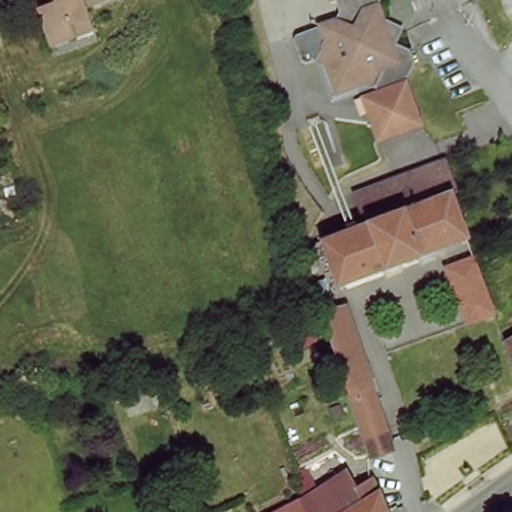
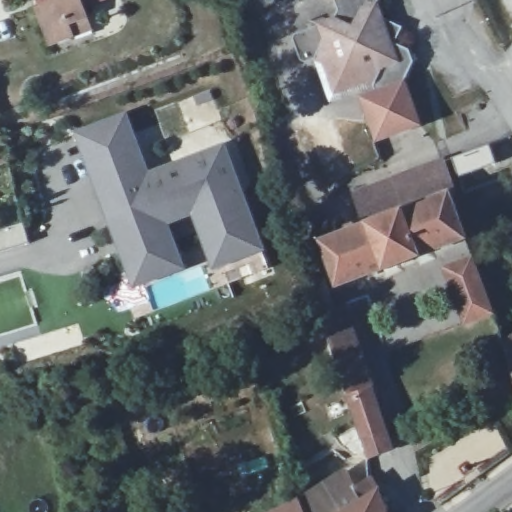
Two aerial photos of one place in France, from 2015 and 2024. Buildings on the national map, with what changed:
unchanged [(49,46),(38,8),(54,3),(54,0),(109,0),(85,8),(89,21),(93,32),(76,38),(49,46)]
unchanged [(399,31),(392,46),(411,58),(402,85),(419,132),(377,146),(357,93),(336,100),(321,63),(303,71),(291,40),(339,20),(333,3),(328,6),(326,0),(371,0),(381,24),(399,31)]
unchanged [(0,119),(0,114),(1,119),(0,119)]
new [(114,192),(122,212),(108,218),(77,134),(126,116),(148,179),(114,192)]
new [(148,179),(224,150),(241,196),(258,239),(271,270),(228,287),(134,321),(118,277),(129,271),(108,218),(122,212),(114,192),(148,179)]
unchanged [(397,214),(369,225),(357,196),(448,160),(457,190),(451,193),(397,214)]
unchanged [(468,240),(339,290),(323,243),(337,238),(369,225),(397,214),(451,193),(468,240)]
new [(28,243),(0,253),(0,231),(23,225),(28,243)]
unchanged [(322,314),(320,307),(302,251),(318,245),(321,256),(316,258),(321,272),(326,270),(339,308),(322,314)]
unchanged [(470,315),(451,255),(476,248),(483,267),(488,285),(494,307),(470,315)]
unchanged [(339,308),(344,306),(386,430),(364,438),(322,314),(339,308)]
unchanged [(502,342),(512,336),(512,376),(502,342)]
unchanged [(349,473),(355,488),(371,480),(379,495),(385,512),(305,512),(301,502),(349,473)]
demolished [(384,502),(399,497),(404,509),(397,512),(388,512),(384,502)]
unchanged [(305,512),(282,512),(301,502),(305,512)]

